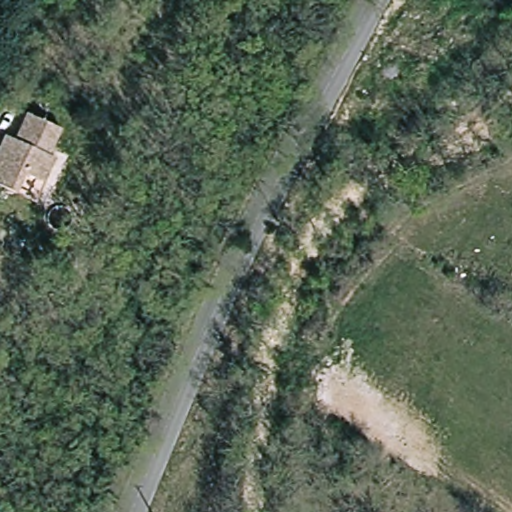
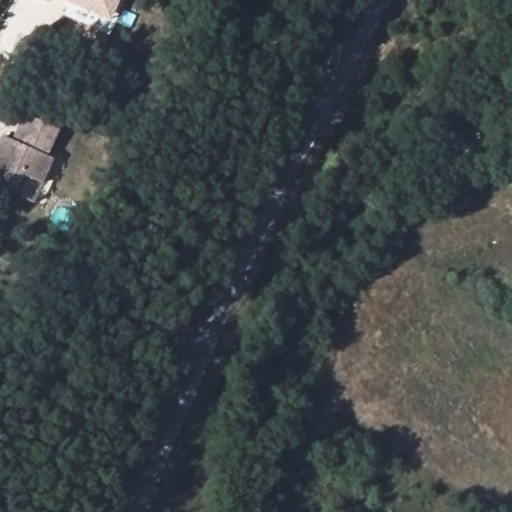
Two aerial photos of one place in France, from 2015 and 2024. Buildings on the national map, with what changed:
new [(48,2),(42,0),(49,0),(48,2)]
new [(112,21),(65,0),(121,0),(112,21)]
unchanged [(55,160),(44,185),(24,175),(16,192),(0,186),(0,146),(6,135),(15,139),(27,114),(61,130),(48,157),(55,160)]

